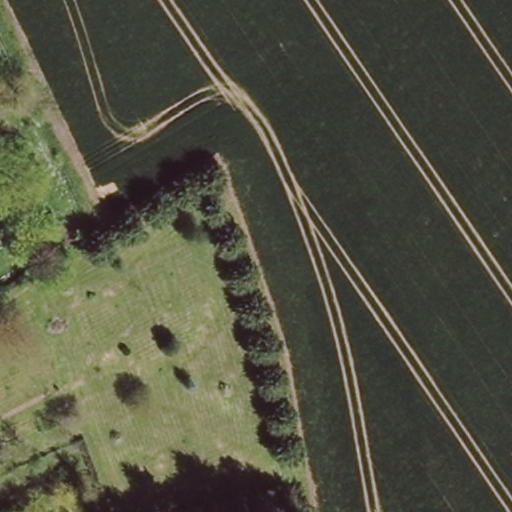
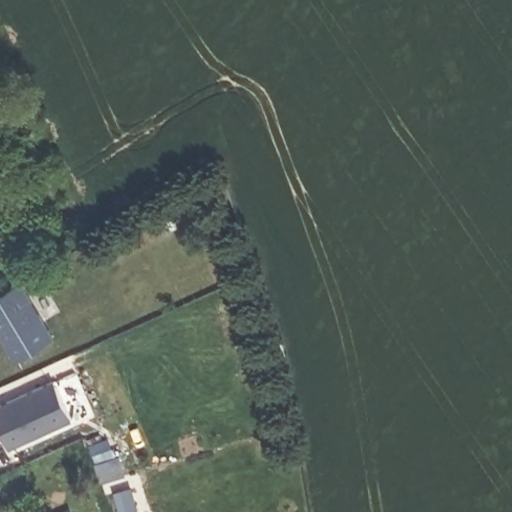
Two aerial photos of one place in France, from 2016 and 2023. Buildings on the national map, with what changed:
new [(0,294),(18,283),(52,336),(14,361),(0,337),(0,294)]
new [(71,419),(10,447),(0,427),(0,404),(54,380),(71,419)]
unchanged [(74,512),(64,512),(73,508),(74,512)]

